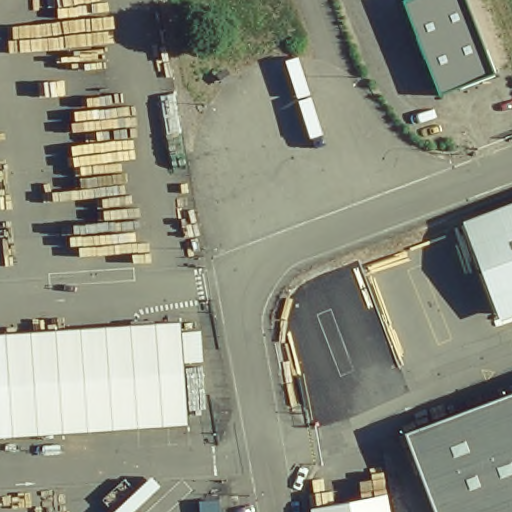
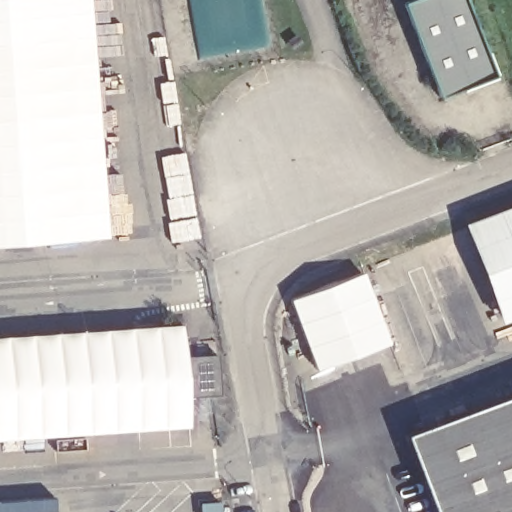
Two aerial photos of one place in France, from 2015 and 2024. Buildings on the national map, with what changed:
new [(90,0),(112,237),(0,247),(0,0),(90,0)]
unchanged [(442,99),(406,4),(415,0),(469,0),(499,77),(442,99)]
unchanged [(464,214),(512,195),(512,307),(502,311),(464,214)]
new [(365,272),(390,346),(318,371),(290,300),(365,272)]
unchanged [(191,426),(0,440),(0,332),(184,319),(191,426)]
unchanged [(413,422),(512,385),(512,512),(448,512),(413,422)]
unchanged [(394,512),(316,512),(315,507),(391,493),(394,512)]

